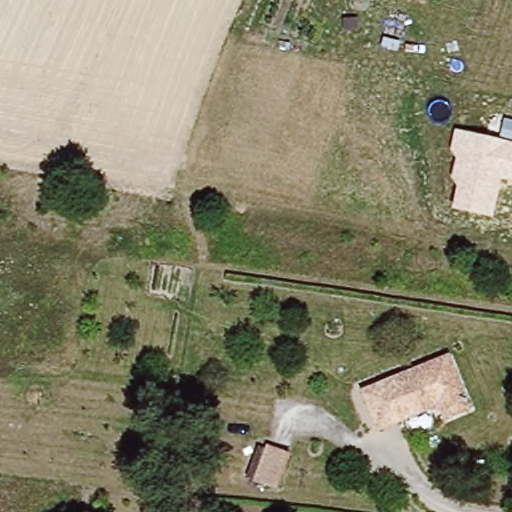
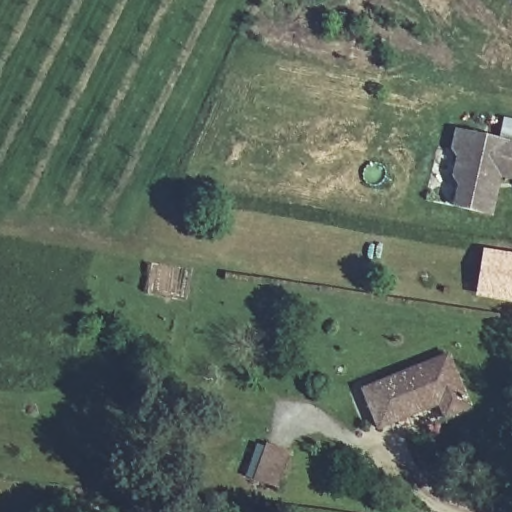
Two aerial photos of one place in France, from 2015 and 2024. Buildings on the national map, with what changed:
unchanged [(512,178),(502,177),(493,216),(453,208),(456,187),(451,179),(454,159),(450,151),(454,131),(512,142),(512,178)]
new [(512,253),(512,301),(474,295),(482,247),(512,253)]
unchanged [(438,402),(378,426),(363,388),(447,354),(469,407),(444,417),(438,402)]
unchanged [(268,482),(279,447),(301,452),(290,489),(268,482)]

